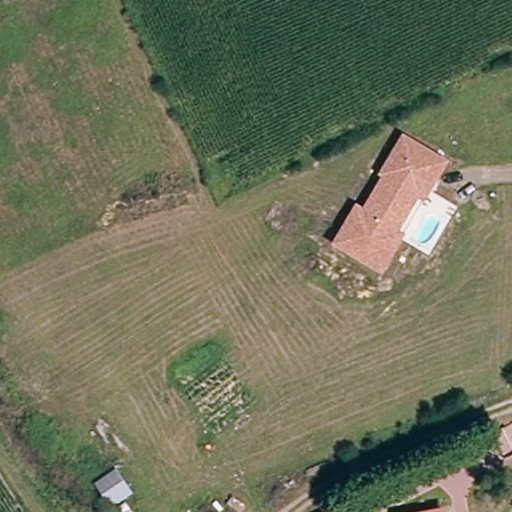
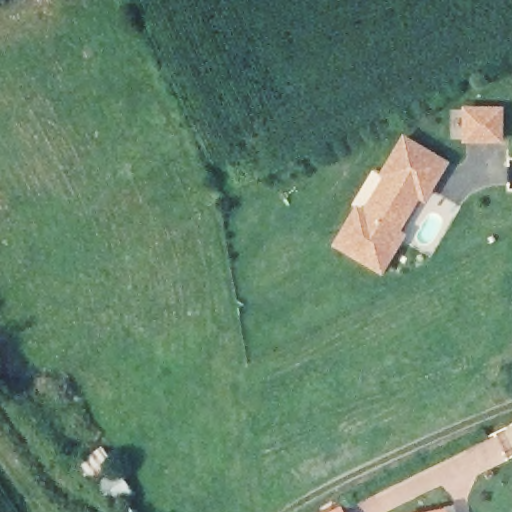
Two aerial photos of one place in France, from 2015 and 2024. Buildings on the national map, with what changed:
new [(462,106),(503,106),(503,142),(461,142),(462,106)]
unchanged [(354,203),(362,208),(380,177),(378,175),(402,134),(449,161),(423,202),(417,199),(400,231),(405,234),(381,276),(331,246),(354,203)]
unchanged [(450,512),(423,512),(449,507),(450,512)]
unchanged [(347,512),(341,512),(346,510),(347,512)]

